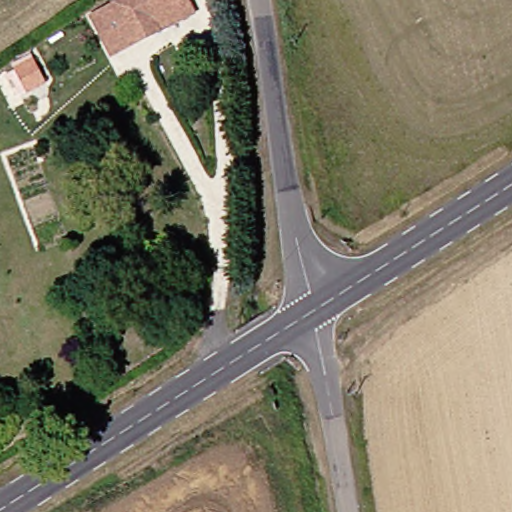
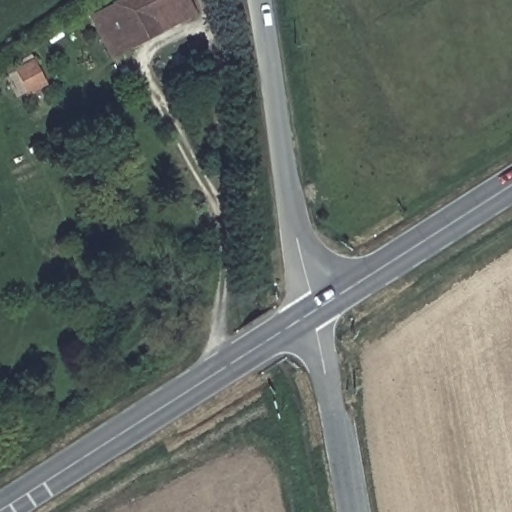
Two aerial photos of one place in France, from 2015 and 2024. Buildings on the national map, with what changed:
unchanged [(105,10),(119,5),(129,0),(169,0),(173,10),(137,28),(137,47),(131,50),(115,59),(105,10)]
unchanged [(37,53),(50,79),(27,88),(17,62),(37,53)]

